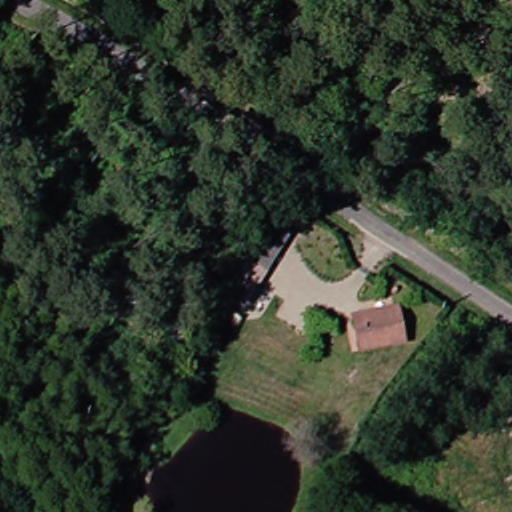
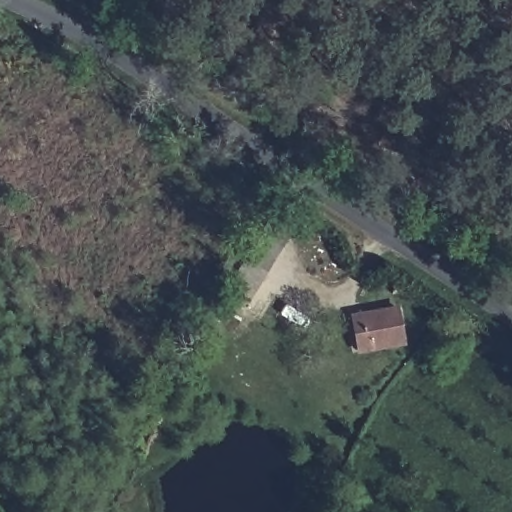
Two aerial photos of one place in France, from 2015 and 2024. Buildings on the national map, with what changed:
unchanged [(246,263),(269,224),(292,239),(269,276),(246,263)]
unchanged [(246,263),(269,276),(247,311),(226,297),(246,263)]
unchanged [(395,340),(361,345),(358,330),(355,317),(370,314),(391,311),(395,340)]

